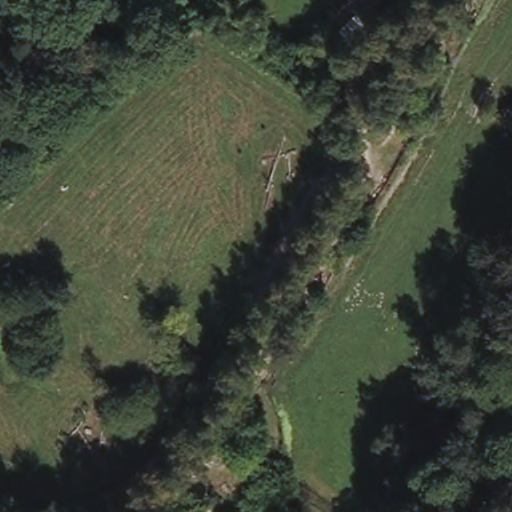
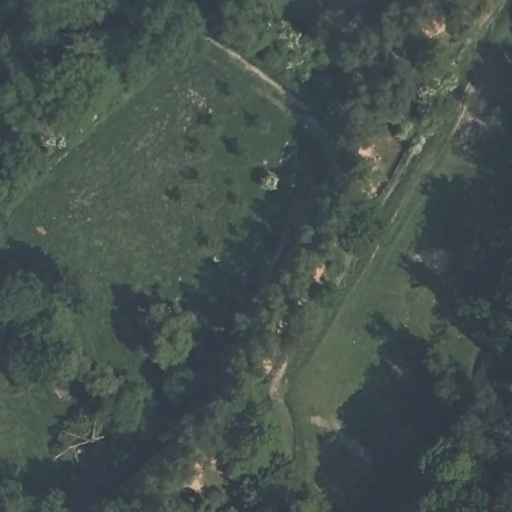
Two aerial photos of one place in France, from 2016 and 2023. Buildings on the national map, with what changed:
unchanged [(202,455),(157,498),(147,487),(189,443),(202,455)]

